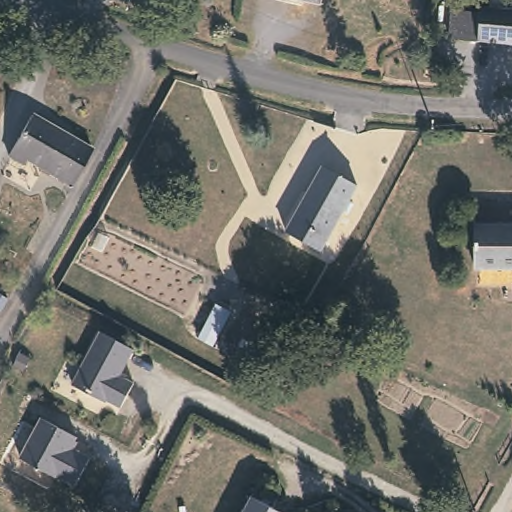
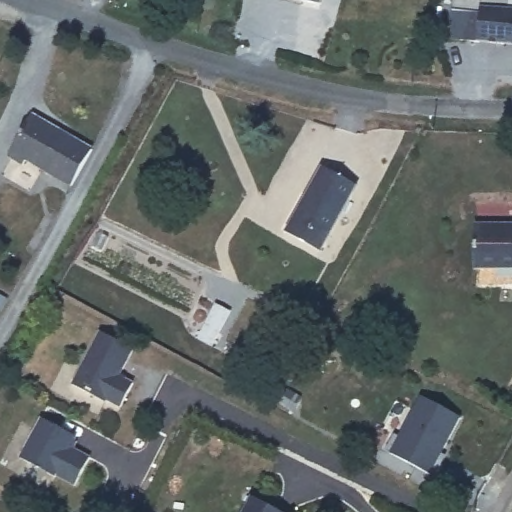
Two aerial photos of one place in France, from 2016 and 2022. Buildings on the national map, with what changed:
unchanged [(316,2),(308,0),(316,0),(316,2)]
unchanged [(512,40),(451,36),(453,7),(482,8),(483,3),(512,4),(512,40)]
unchanged [(94,147),(74,184),(26,158),(22,165),(8,156),(31,113),(94,147)]
unchanged [(358,184),(319,248),(283,229),(321,164),(358,184)]
unchanged [(512,266),(478,266),(477,220),(512,220),(512,266)]
unchanged [(102,333),(135,351),(121,377),(135,385),(122,409),(108,402),(107,404),(74,386),(102,333)]
new [(396,434),(401,436),(422,395),(462,416),(440,459),(445,461),(437,476),(388,450),(396,434)]
unchanged [(39,418),(75,437),(69,447),(88,457),(73,486),(54,475),(53,477),(18,458),(39,418)]
unchanged [(245,512),(255,495),(284,512),(245,512)]

